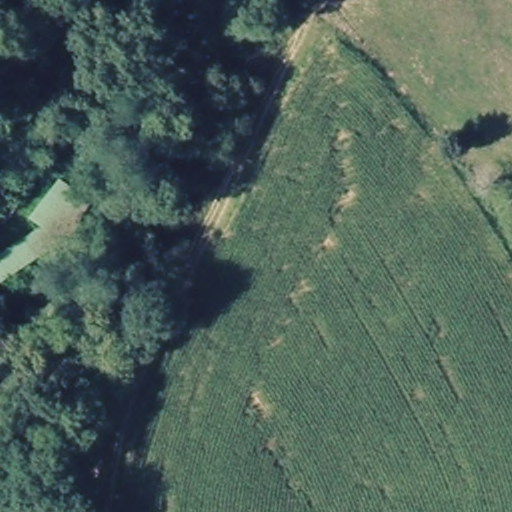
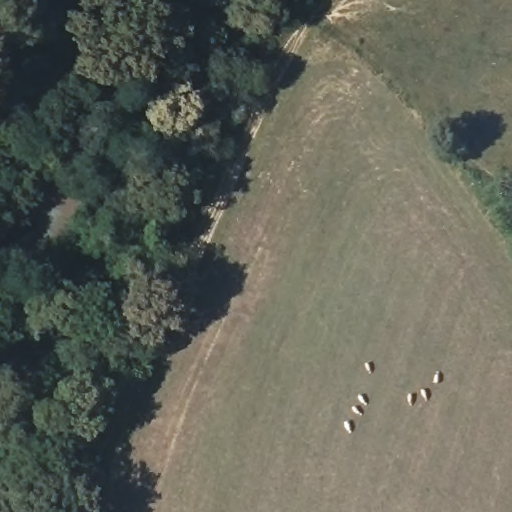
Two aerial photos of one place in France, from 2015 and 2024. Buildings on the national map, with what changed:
unchanged [(103,213),(77,255),(54,241),(37,252),(42,263),(0,284),(0,252),(44,223),(34,214),(60,180),(103,213)]

